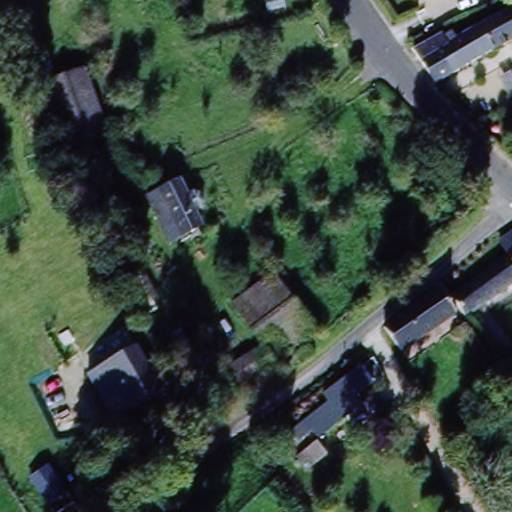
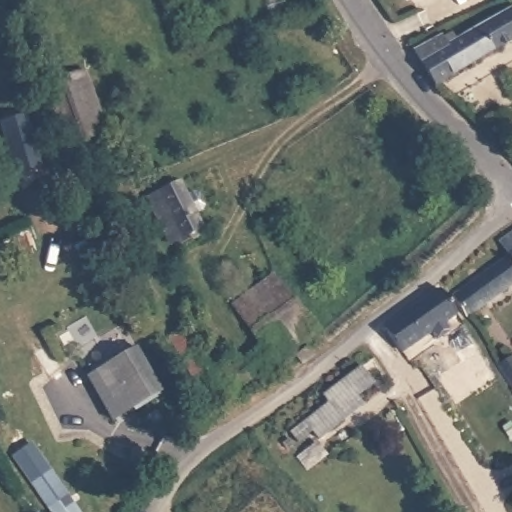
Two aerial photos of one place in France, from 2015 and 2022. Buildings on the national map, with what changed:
unchanged [(441,85),(419,49),(444,34),(447,36),(456,31),(460,38),(512,6),(512,41),(442,85),(441,85)]
unchanged [(343,58),(334,64),(328,55),(336,49),(343,58)]
unchanged [(66,148),(44,87),(88,71),(110,132),(81,144),(88,162),(70,169),(63,150),(66,148)]
unchanged [(172,243),(151,199),(183,183),(189,196),(195,194),(201,196),(206,205),(204,210),(198,213),(204,227),(172,243)]
unchanged [(511,254),(502,240),(512,233),(512,284),(468,315),(454,295),(511,254)]
unchanged [(128,283),(131,280),(128,276),(133,272),(136,276),(140,273),(160,298),(156,301),(161,309),(151,319),(146,310),(148,308),(128,283)]
unchanged [(228,369),(269,345),(236,302),(277,272),(319,328),(279,360),(282,365),(263,377),(259,373),(213,402),(173,336),(198,321),(228,369)]
unchanged [(429,297),(442,288),(458,312),(401,350),(385,325),(386,323),(429,297)]
unchanged [(138,351),(161,390),(111,415),(89,377),(138,351)]
unchanged [(512,358),(512,378),(503,365),(512,358)]
unchanged [(294,430),(309,418),(329,400),(324,395),(361,365),(374,380),(357,395),(364,402),(344,419),(324,436),(317,427),(302,438),(294,430)]
unchanged [(291,438),(296,444),(289,448),(286,442),(291,438)]
unchanged [(319,441),(329,455),(311,467),(302,455),(319,441)]
unchanged [(80,510),(78,512),(56,512),(33,478),(48,466),(80,510)]

